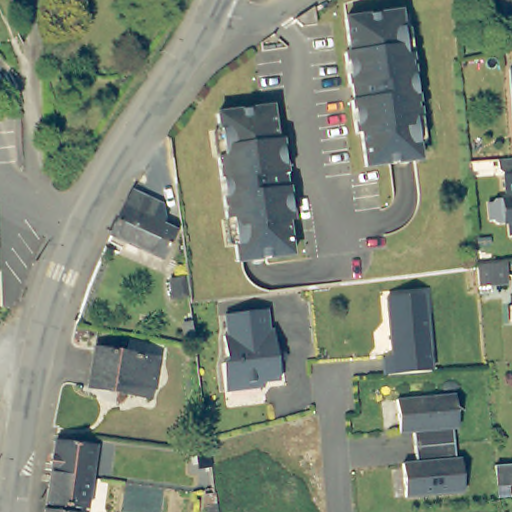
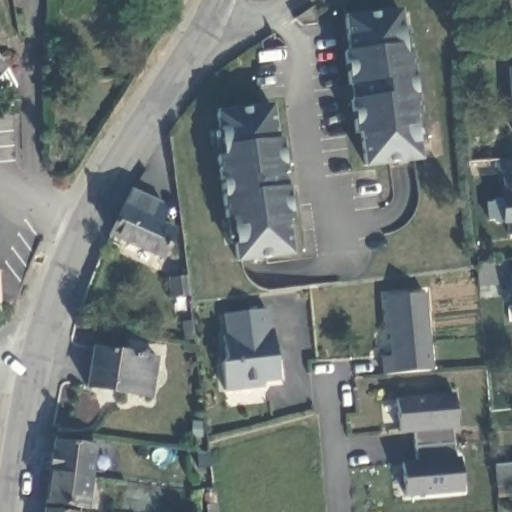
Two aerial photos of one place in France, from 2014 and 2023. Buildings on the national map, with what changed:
unchanged [(368,165),(365,163),(361,133),(356,132),(345,51),(351,50),(346,17),(400,10),(406,54),(411,53),(419,113),(414,115),(420,159),(368,165)]
unchanged [(512,68),(512,118),(507,68),(512,68)]
unchanged [(272,106),(277,140),(282,140),(285,160),(292,220),(288,221),(292,255),(237,261),(231,217),(227,217),(220,173),(219,159),(223,157),(218,114),(231,111),(272,106)]
unchanged [(171,175),(157,176),(155,158),(169,157),(171,175)]
unchanged [(502,227),(499,225),(494,224),(493,206),(497,206),(499,202),(510,201),(508,179),(503,172),(502,164),(505,164),(512,163),(512,231),(511,226),(502,227)]
unchanged [(158,200),(150,216),(172,228),(158,257),(109,235),(133,187),(158,200)]
unchanged [(507,285),(477,288),(475,271),(475,267),(505,265),(507,285)]
unchanged [(186,297),(167,295),(166,272),(183,271),(186,297)]
unchanged [(380,357),(389,356),(384,296),(423,293),(429,370),(423,370),(381,373),(380,357)]
unchanged [(268,330),(272,330),(274,346),(280,351),(276,357),(278,380),(262,382),(262,387),(224,391),(221,364),(225,358),(223,335),(227,335),(224,314),(266,310),(268,330)]
unchanged [(84,390),(93,348),(155,358),(147,400),(84,390)]
unchanged [(444,443),(419,445),(411,446),(410,430),(396,432),(393,398),(451,393),(454,427),(442,428),(444,443)]
unchanged [(55,440),(94,445),(89,479),(49,472),(55,440)]
unchanged [(445,458),(457,458),(460,491),(401,496),(398,462),(412,461),(411,446),(419,445),(444,443),(445,458)]
unchanged [(209,452),(210,470),(194,471),(190,450),(209,452)]
unchanged [(492,463),(512,462),(512,493),(495,494),(492,463)]
unchanged [(89,479),(83,510),(43,504),(49,472),(89,479)]
unchanged [(48,512),(44,512),(44,511),(48,512)]

